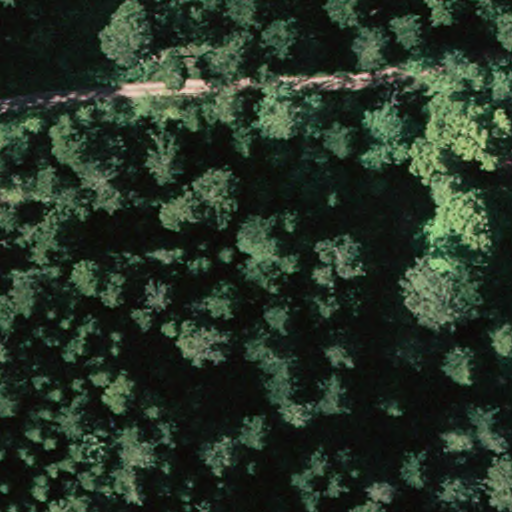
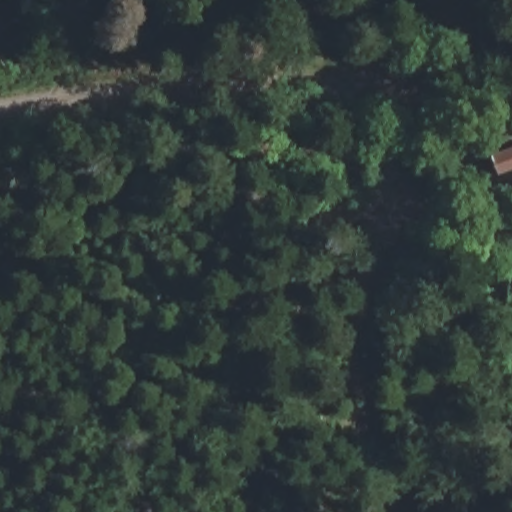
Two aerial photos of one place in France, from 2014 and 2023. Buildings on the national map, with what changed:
unchanged [(495,169),(485,146),(512,137),(512,164),(495,169)]

